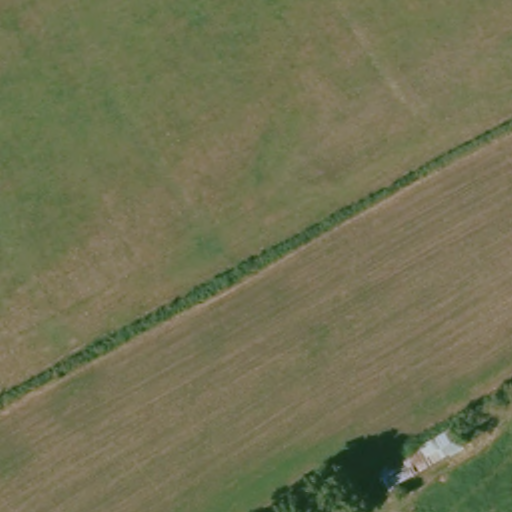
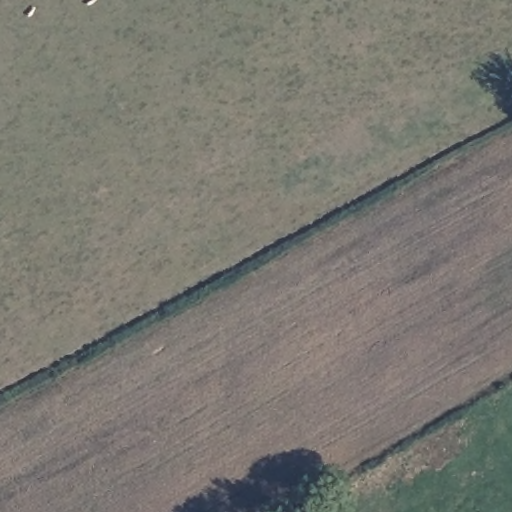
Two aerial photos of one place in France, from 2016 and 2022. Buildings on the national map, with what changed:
unchanged [(447,431),(457,452),(373,496),(362,475),(447,431)]

